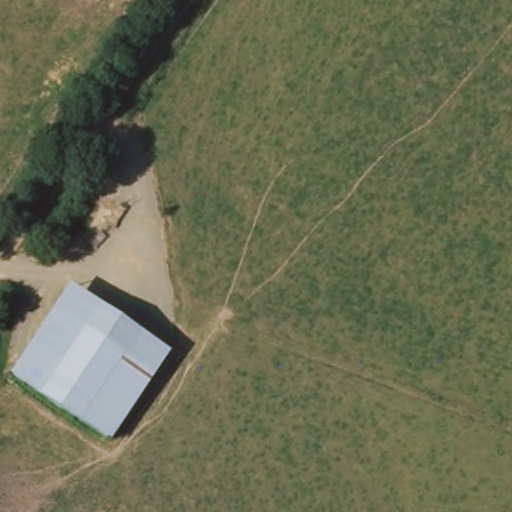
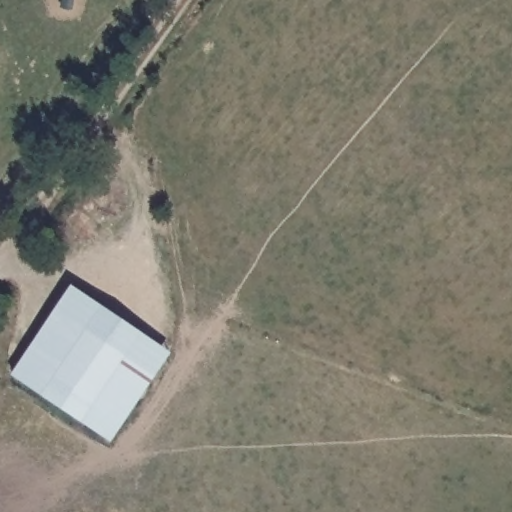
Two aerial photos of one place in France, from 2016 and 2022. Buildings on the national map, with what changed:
unchanged [(72,287),(167,352),(108,439),(12,375),(72,287)]

